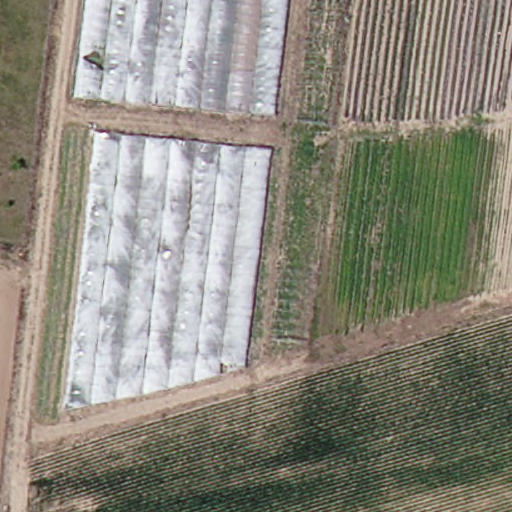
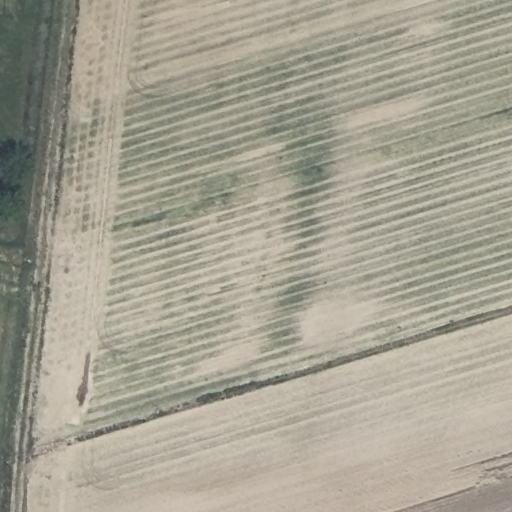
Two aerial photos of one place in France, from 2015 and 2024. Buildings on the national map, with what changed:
demolished [(276,117),(81,101),(93,0),(290,0),(276,117)]
demolished [(333,127),(290,121),(305,0),(348,0),(333,127)]
demolished [(273,147),(234,470),(60,453),(96,132),(273,147)]

